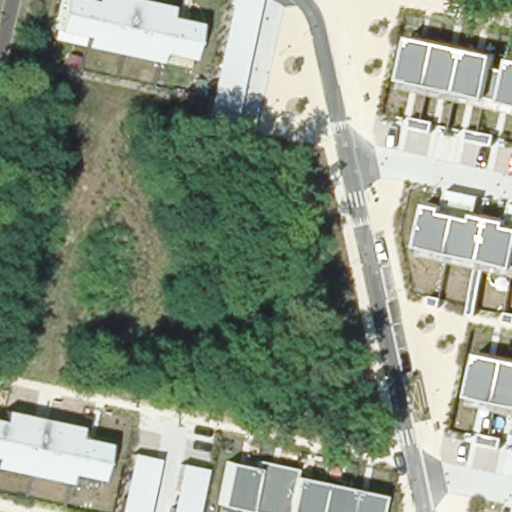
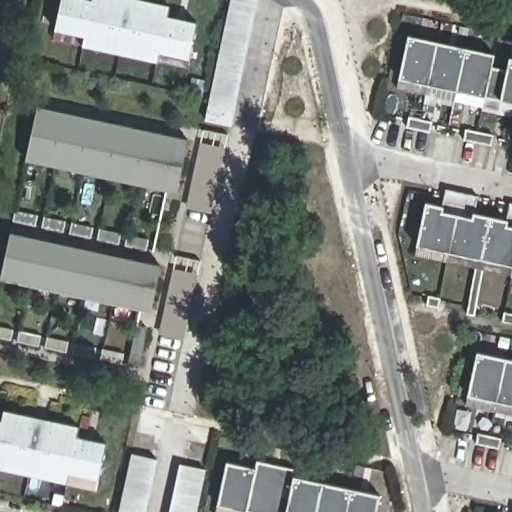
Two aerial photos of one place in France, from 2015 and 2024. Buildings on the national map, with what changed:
unchanged [(198,22),(191,58),(161,53),(159,61),(84,46),(85,36),(57,29),(63,0),(147,0),(170,5),(169,16),(198,22)]
unchanged [(232,122),(207,117),(232,0),(258,0),(232,122)]
unchanged [(486,97),(401,79),(409,36),(495,54),(492,67),(509,71),(511,58),(512,58),(512,101),(502,100),(486,97)]
new [(37,108),(189,139),(176,193),(28,163),(37,108)]
new [(189,207),(202,143),(227,147),(213,212),(189,207)]
unchanged [(417,246),(426,204),(443,207),(446,190),(479,196),(476,214),(508,220),(511,203),(512,203),(512,265),(417,246)]
new [(1,281),(2,275),(10,234),(162,266),(153,309),(141,307),(141,311),(1,281)]
new [(184,339),(159,333),(174,269),(199,273),(184,339)]
unchanged [(469,395),(478,352),(512,360),(512,404),(469,395)]
unchanged [(5,410),(79,425),(77,435),(108,443),(99,478),(69,472),(66,481),(0,468),(0,420),(3,421),(5,410)]
unchanged [(148,512),(121,512),(134,453),(159,459),(148,512)]
unchanged [(219,504),(227,463),(255,468),(256,460),(296,469),(294,477),(379,494),(376,512),(254,512),(247,511),(219,504)]
unchanged [(172,512),(182,463),(208,469),(198,512),(172,512)]

